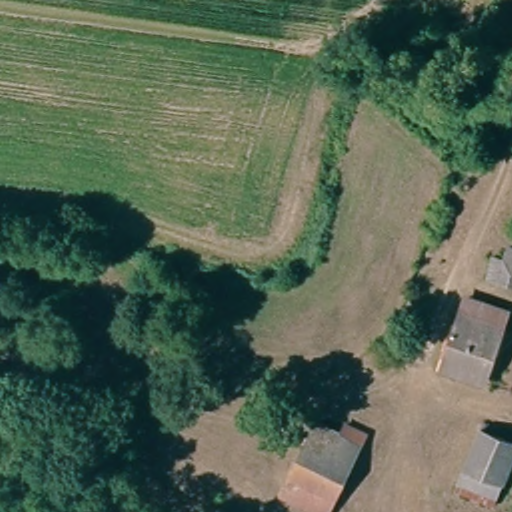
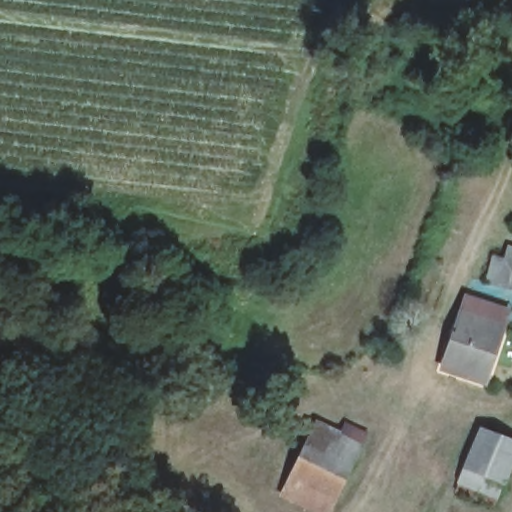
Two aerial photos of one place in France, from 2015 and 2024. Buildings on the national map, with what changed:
unchanged [(496,251),(500,252),(512,255),(512,289),(488,283),(496,251)]
unchanged [(482,384),(442,373),(461,298),(501,309),(482,384)]
unchanged [(478,420),(512,435),(512,479),(506,494),(455,471),(478,420)]
unchanged [(345,458),(328,499),(289,485),(307,438),(311,427),(351,444),(345,458)]

